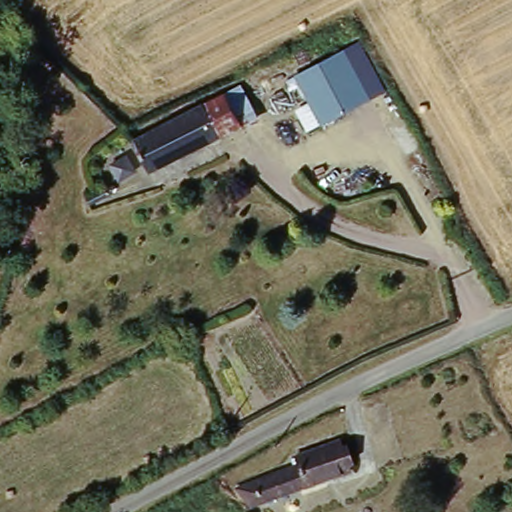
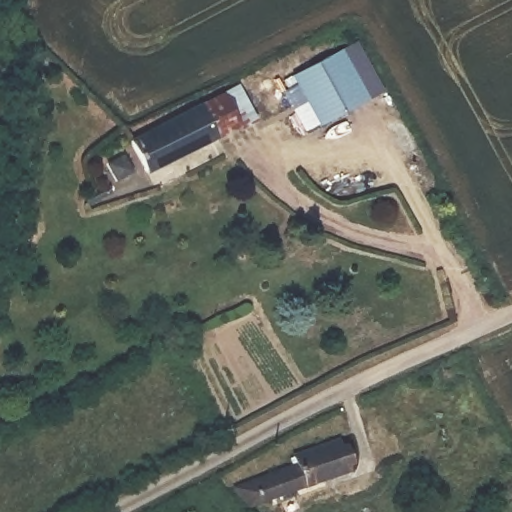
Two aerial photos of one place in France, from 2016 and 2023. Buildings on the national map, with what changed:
unchanged [(356,46),(382,96),(332,122),(313,84),(304,88),(298,76),(356,46)]
unchanged [(242,130),(152,178),(137,149),(227,102),(242,130)]
unchanged [(252,493),(304,470),(300,460),(348,440),(362,474),(272,512),(249,512),(242,498),(252,493)]

